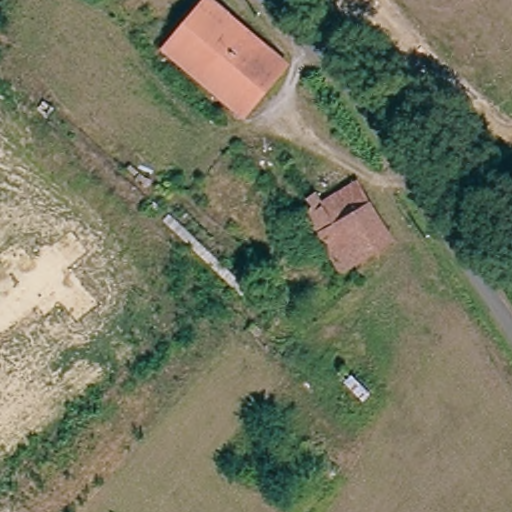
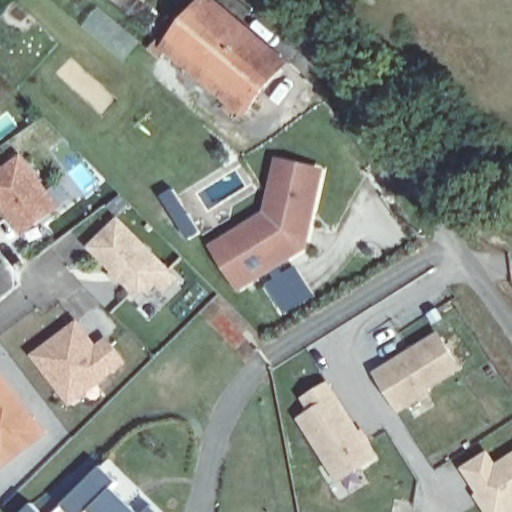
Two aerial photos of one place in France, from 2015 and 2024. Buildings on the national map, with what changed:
unchanged [(169,48),(209,0),(218,0),(288,62),(247,113),(169,48)]
new [(21,236),(0,207),(0,171),(24,154),(62,208),(21,236)]
new [(241,291),(212,245),(265,211),(277,158),(327,169),(308,251),(241,291)]
demolished [(312,208),(308,200),(317,195),(323,202),(358,181),(393,238),(342,269),(306,212),(312,208)]
new [(162,293),(154,286),(147,293),(134,292),(92,251),(118,224),(167,273),(175,280),(162,293)]
new [(71,405),(33,355),(80,319),(97,344),(109,336),(127,363),(71,405)]
new [(431,387),(435,393),(401,413),(374,372),(441,331),(466,368),(431,387)]
new [(1,374),(46,434),(2,466),(0,463),(0,375),(1,374)]
new [(362,430),(365,427),(374,441),(370,444),(380,460),(339,484),(297,419),(312,412),(302,397),(332,381),(362,430)]
new [(512,453),(512,512),(486,512),(475,495),(478,493),(462,468),(490,449),(497,463),(512,453)]
new [(90,512),(74,512),(62,501),(102,463),(122,483),(115,490),(137,512),(94,512),(92,510),(90,512)]
new [(160,512),(145,512),(152,504),(160,512)]

